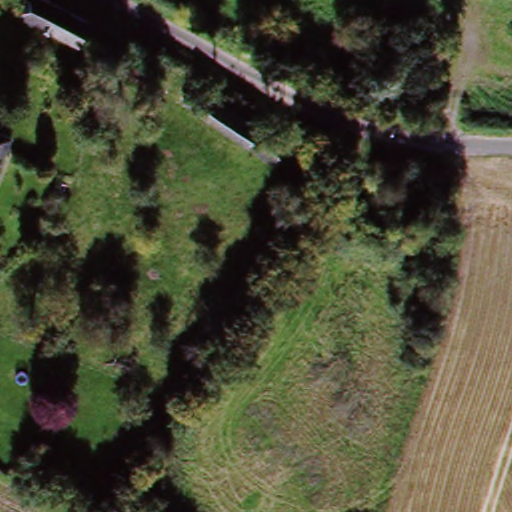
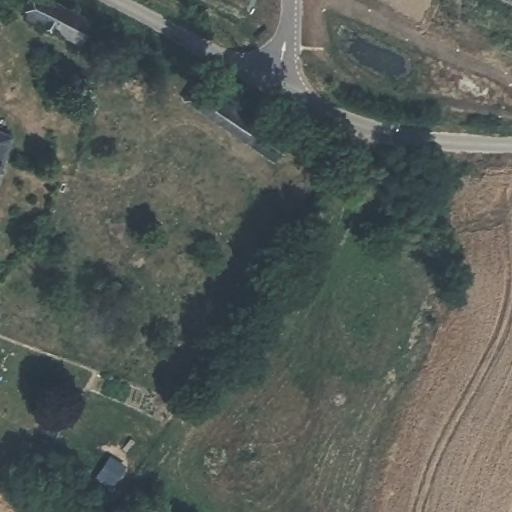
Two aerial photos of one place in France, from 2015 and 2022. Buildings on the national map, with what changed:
unchanged [(23,0),(51,0),(75,15),(62,35),(18,7),(23,0)]
unchanged [(190,101),(205,82),(283,139),(270,158),(190,101)]
unchanged [(0,163),(0,128),(13,135),(0,163)]

